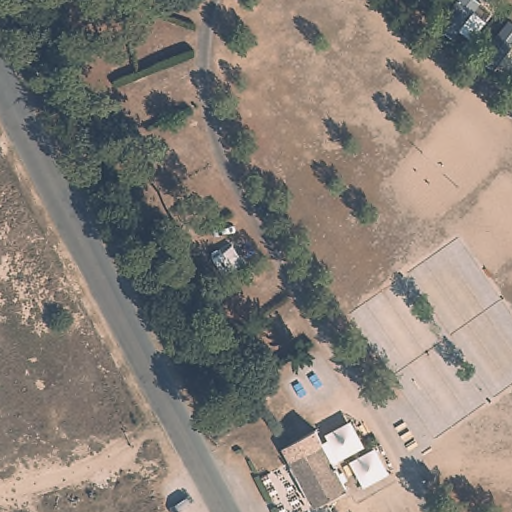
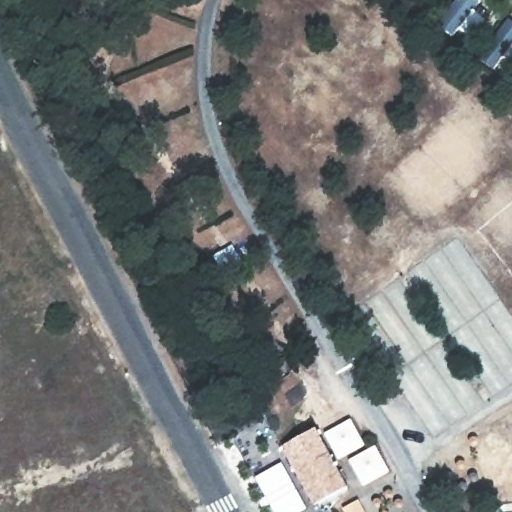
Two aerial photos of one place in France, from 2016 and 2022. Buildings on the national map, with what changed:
unchanged [(323,446),(347,491),(314,508),(291,462),(323,446)]

